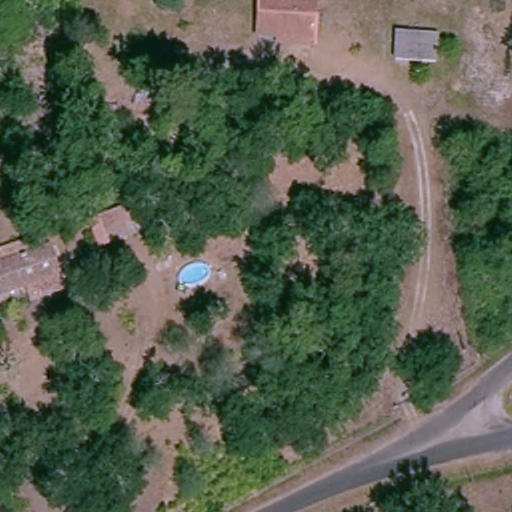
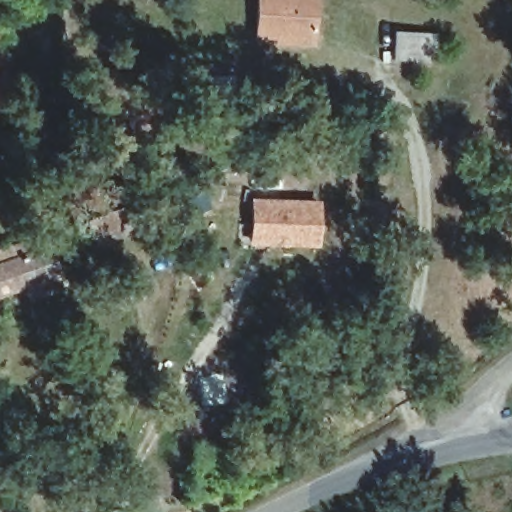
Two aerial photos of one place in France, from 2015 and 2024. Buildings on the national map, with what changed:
unchanged [(275,49),(275,40),(254,41),(252,0),(310,0),(311,37),(311,46),(275,49)]
unchanged [(425,66),(403,64),(407,33),(430,36),(425,66)]
new [(250,198),(317,200),(317,246),(249,245),(250,198)]
unchanged [(86,223),(124,209),(137,240),(97,253),(86,223)]
unchanged [(17,301),(15,292),(0,296),(0,267),(6,265),(4,256),(19,251),(22,260),(42,252),(51,279),(54,289),(17,301)]

